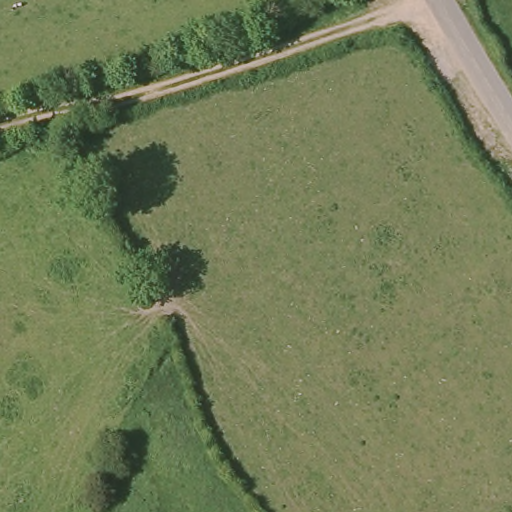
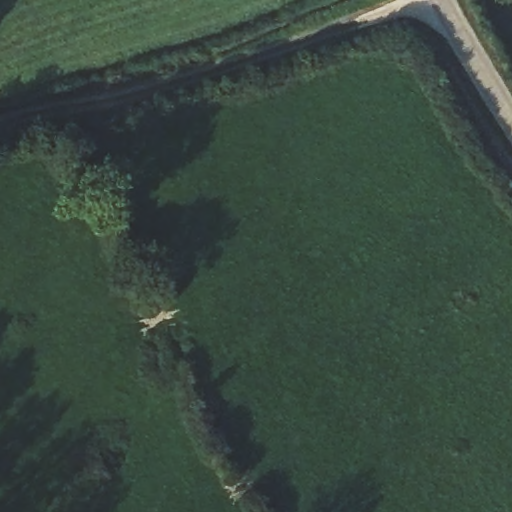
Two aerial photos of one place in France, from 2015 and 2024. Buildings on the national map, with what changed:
[]

